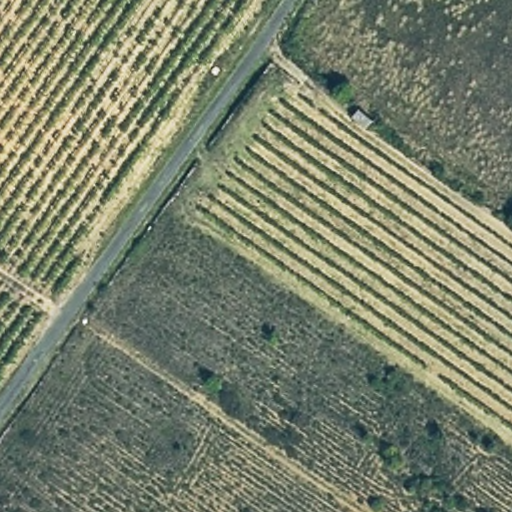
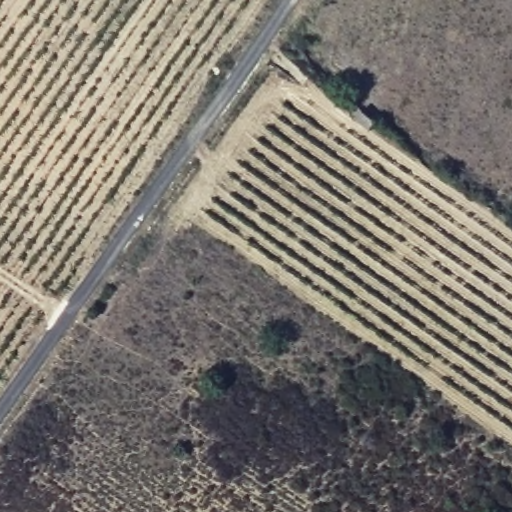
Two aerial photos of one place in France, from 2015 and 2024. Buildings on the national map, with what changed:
unchanged [(359,104),(372,116),(362,126),(350,116),(359,104)]

